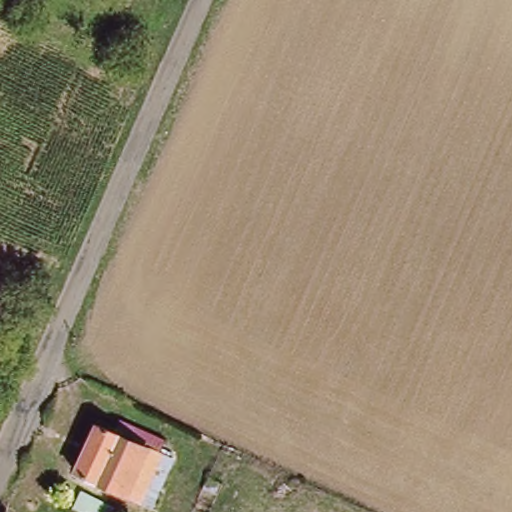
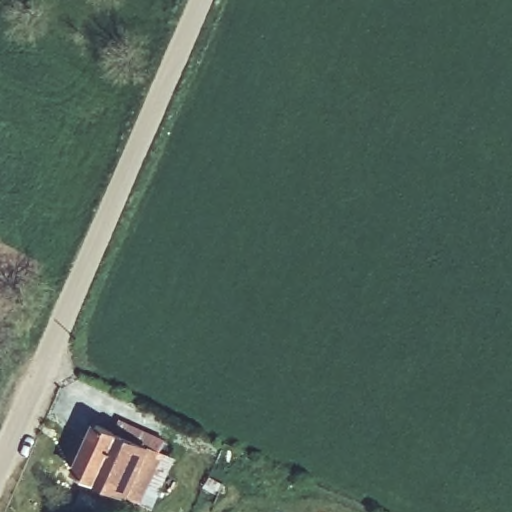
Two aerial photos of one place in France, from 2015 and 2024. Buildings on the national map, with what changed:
unchanged [(132,500),(72,474),(95,424),(153,449),(175,461),(154,509),(132,500)]

